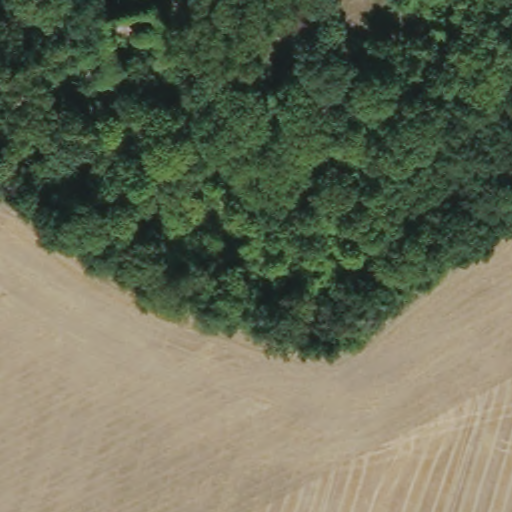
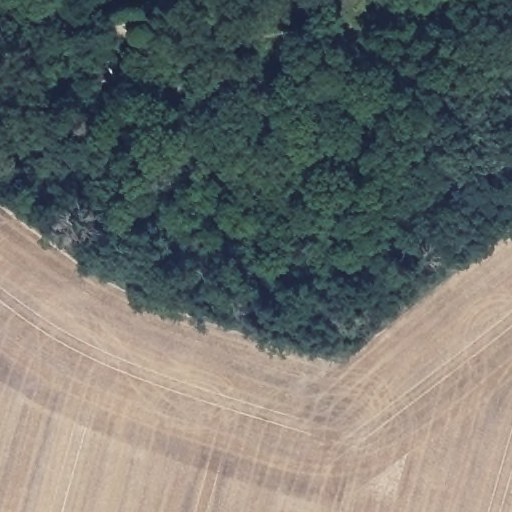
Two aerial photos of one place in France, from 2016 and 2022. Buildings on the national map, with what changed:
unchanged [(238,77),(203,70),(209,42),(243,49),(238,77)]

